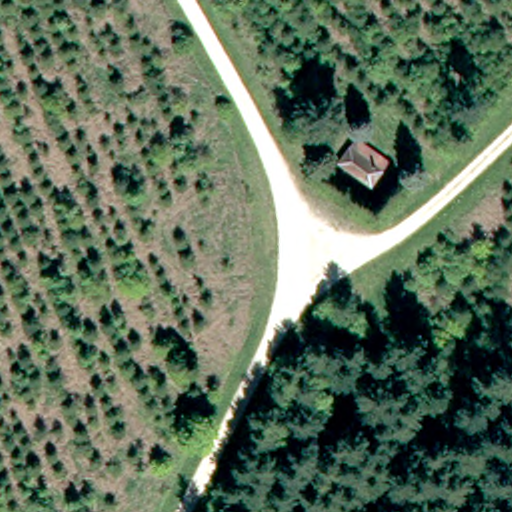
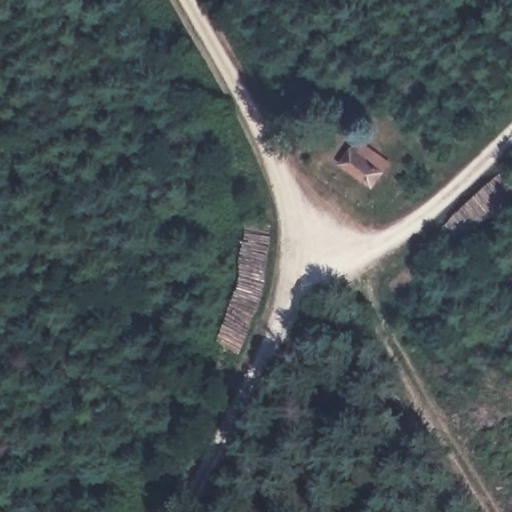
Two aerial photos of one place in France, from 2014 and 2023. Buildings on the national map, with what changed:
unchanged [(327,169),(349,131),(390,158),(369,187),(327,169)]

